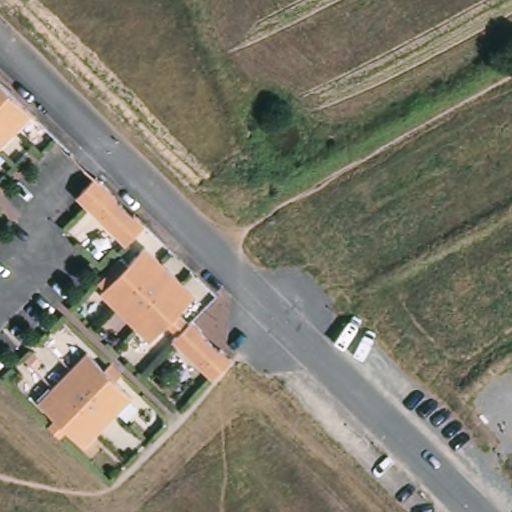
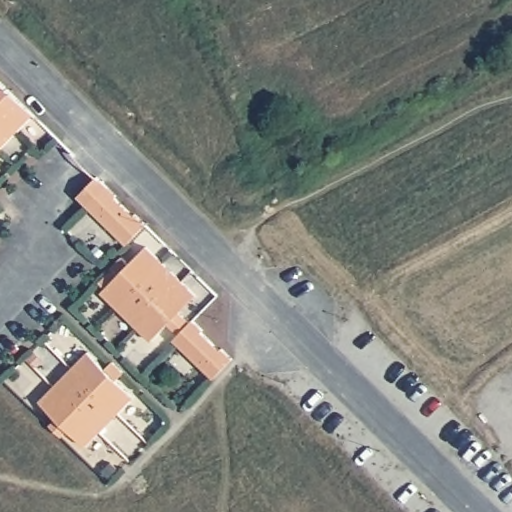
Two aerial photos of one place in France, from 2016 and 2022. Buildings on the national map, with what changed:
unchanged [(0,89),(31,119),(0,152),(0,89)]
unchanged [(125,253),(74,202),(93,182),(113,201),(109,205),(131,225),(134,221),(135,222),(144,231),(125,253)]
unchanged [(198,338),(216,356),(221,352),(231,362),(224,370),(209,384),(169,346),(175,339),(162,327),(144,348),(92,300),(109,281),(101,273),(115,260),(123,268),(140,250),(192,297),(174,318),(185,328),(190,322),(201,333),(198,338)]
unchanged [(49,423),(31,408),(81,358),(98,373),(104,367),(118,380),(112,386),(129,402),(81,455),(64,437),(56,444),(41,430),(49,423)]

